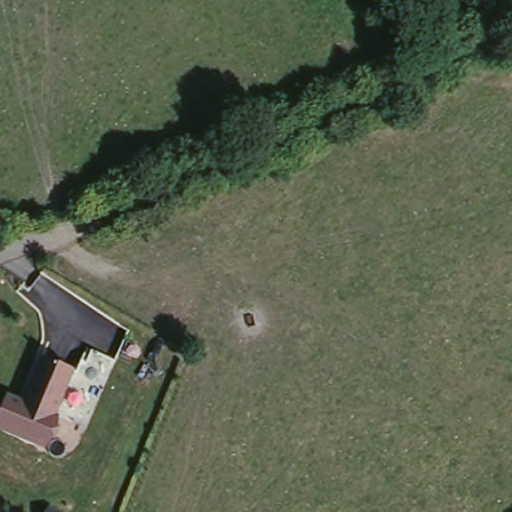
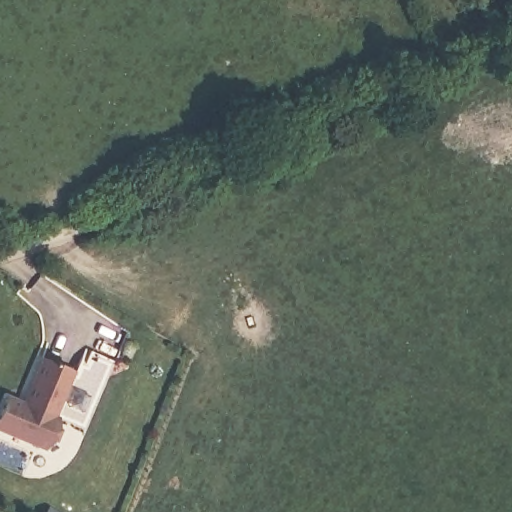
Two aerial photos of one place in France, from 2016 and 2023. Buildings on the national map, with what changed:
unchanged [(45,354),(72,368),(45,415),(16,401),(45,354)]
unchanged [(55,447),(0,427),(0,419),(5,392),(19,396),(16,401),(45,415),(48,408),(61,416),(55,447)]

